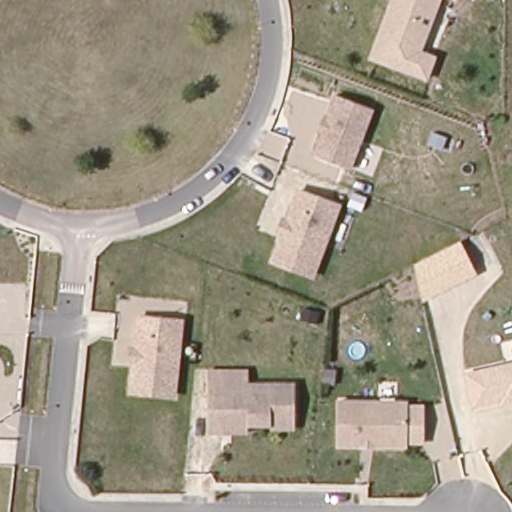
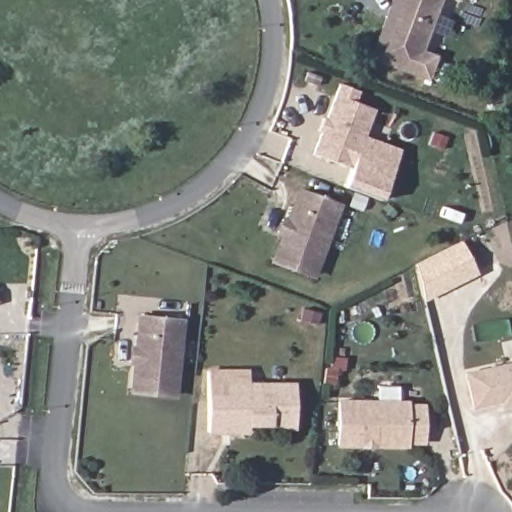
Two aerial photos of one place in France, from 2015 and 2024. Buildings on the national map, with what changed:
unchanged [(422,50),(439,56),(429,85),(365,61),(388,0),(440,0),(422,50)]
unchanged [(459,5),(447,0),(460,0),(459,5)]
unchanged [(333,94),(371,107),(349,167),(312,154),(333,94)]
new [(400,149),(383,201),(345,186),(352,168),(349,167),(360,136),(400,149)]
unchanged [(334,203),(311,273),(271,260),(294,190),(334,203)]
unchanged [(420,305),(413,263),(460,240),(477,277),(420,305)]
unchanged [(181,321),(174,395),(132,390),(140,317),(181,321)]
unchanged [(512,360),(512,399),(501,402),(500,397),(473,404),(465,372),(512,360)]
unchanged [(225,433),(208,433),(207,397),(224,397),(224,384),(296,383),(296,424),(247,424),(248,432),(225,433)]
unchanged [(406,405),(424,406),(424,442),(409,442),(409,450),(333,449),(334,399),(406,399),(406,405)]

